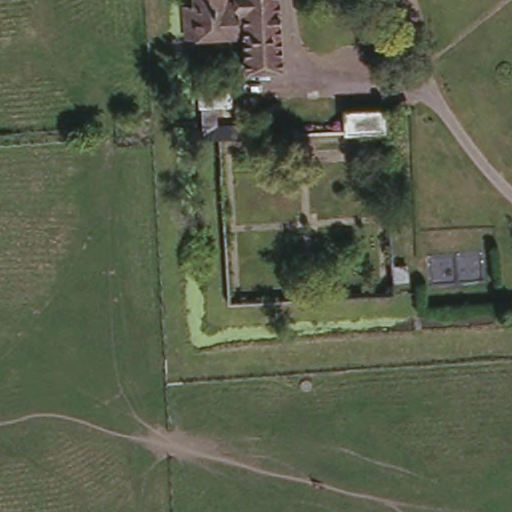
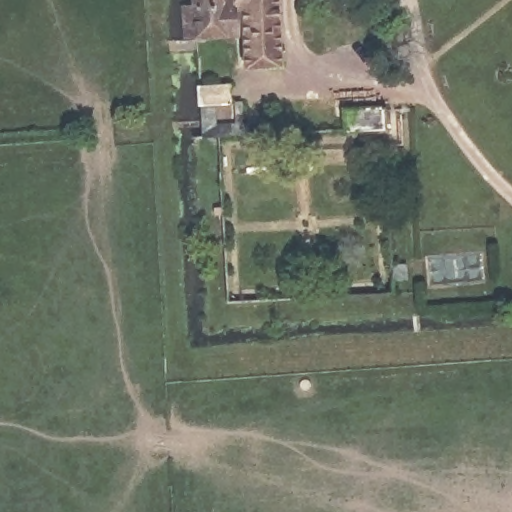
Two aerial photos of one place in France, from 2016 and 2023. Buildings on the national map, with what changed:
unchanged [(282,63),(246,63),(246,32),(191,31),(191,0),(283,0),(282,63)]
unchanged [(184,68),(218,66),(218,85),(206,86),(207,107),(228,107),(229,84),(237,83),(237,122),(188,123),(184,68)]
unchanged [(380,139),(335,140),(332,105),(378,102),(380,139)]

